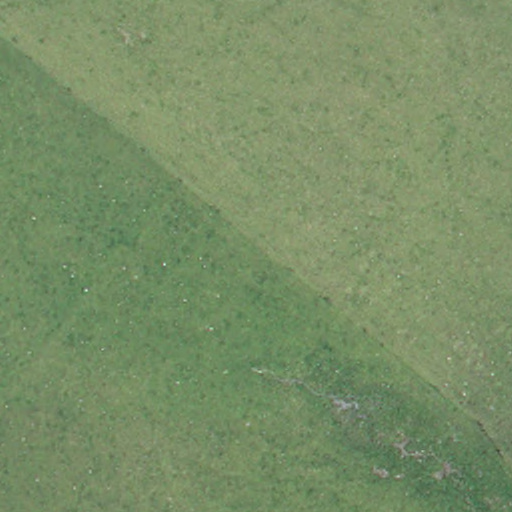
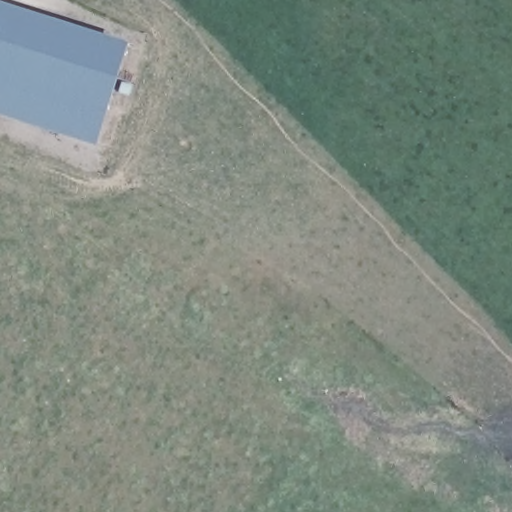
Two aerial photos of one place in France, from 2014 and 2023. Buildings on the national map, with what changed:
new [(97,147),(0,115),(0,3),(130,43),(97,147)]

